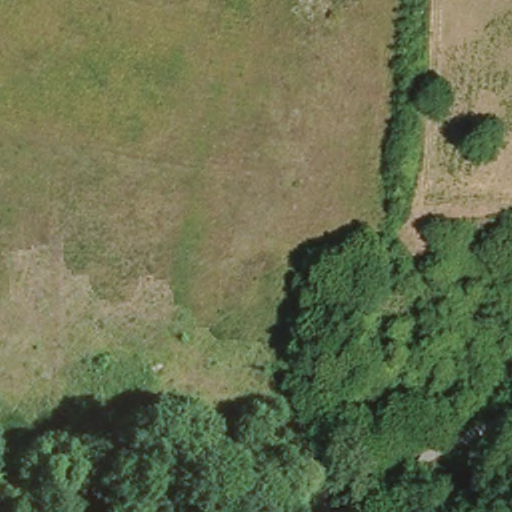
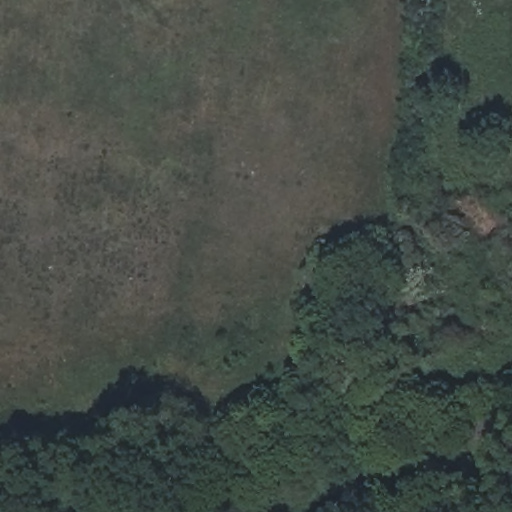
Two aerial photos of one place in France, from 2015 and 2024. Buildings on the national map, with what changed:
[]

